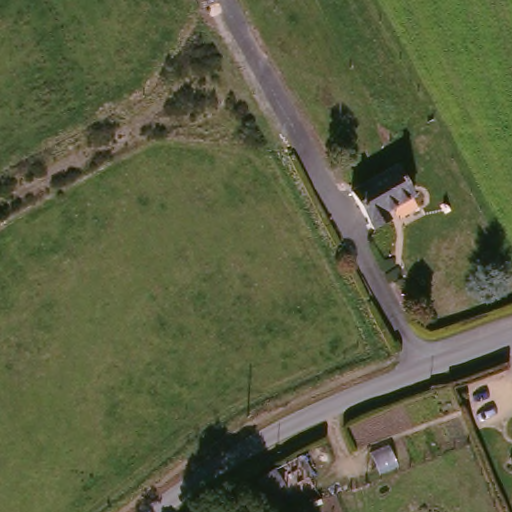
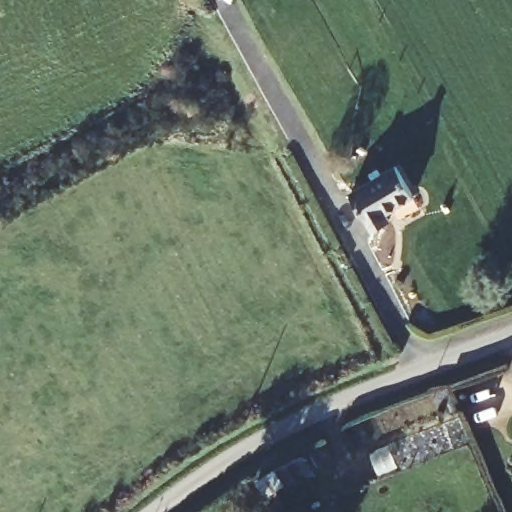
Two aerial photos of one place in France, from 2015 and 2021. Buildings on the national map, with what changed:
unchanged [(399,163),(417,194),(389,210),(392,217),(376,227),(354,188),(399,163)]

